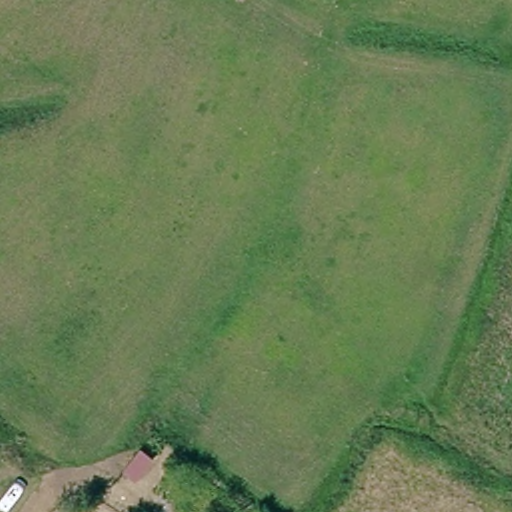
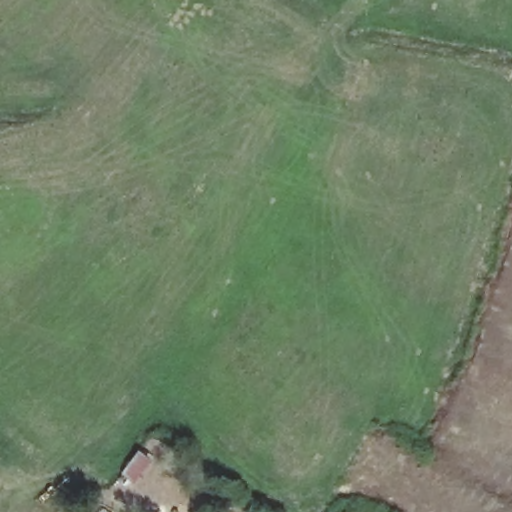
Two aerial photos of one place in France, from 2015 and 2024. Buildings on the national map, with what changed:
unchanged [(133,473),(118,464),(130,445),(144,456),(133,473)]

